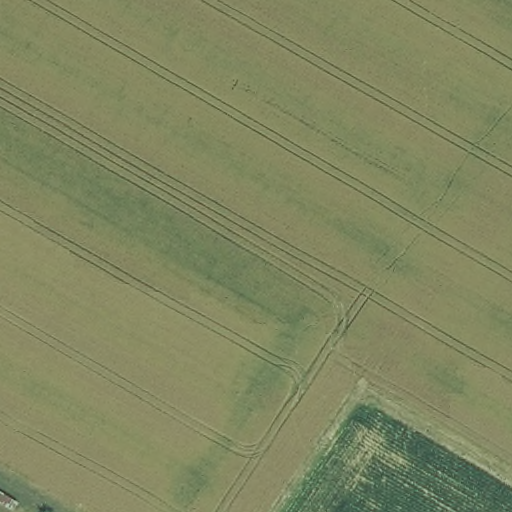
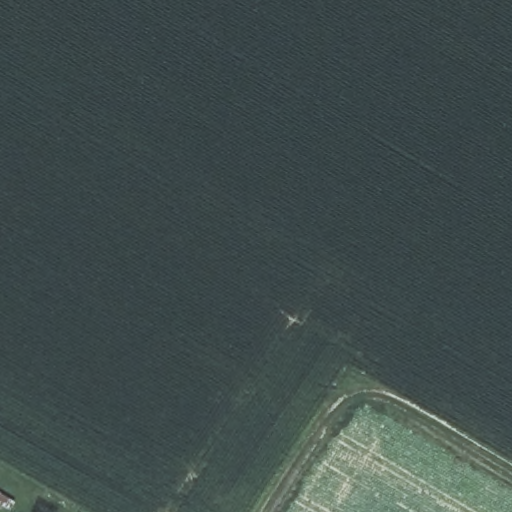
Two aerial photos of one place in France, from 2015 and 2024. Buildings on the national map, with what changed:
[]

